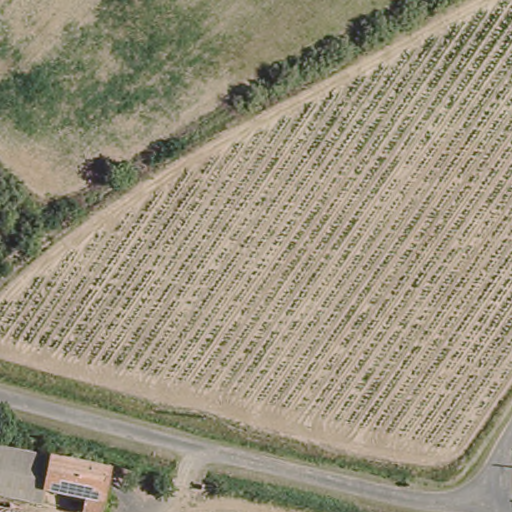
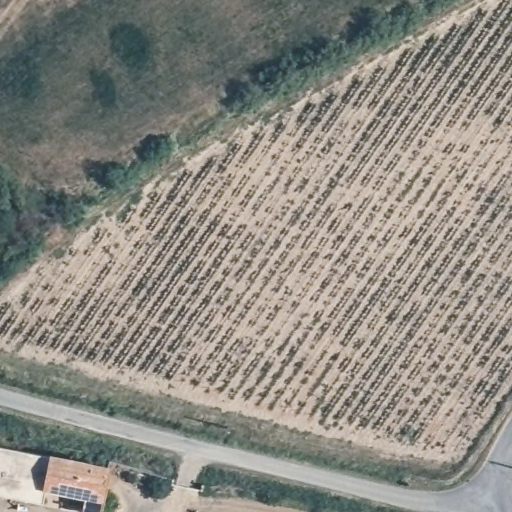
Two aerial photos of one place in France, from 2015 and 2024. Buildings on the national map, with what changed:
unchanged [(101,512),(82,512),(85,497),(45,489),(42,503),(0,495),(0,445),(111,467),(101,512)]

